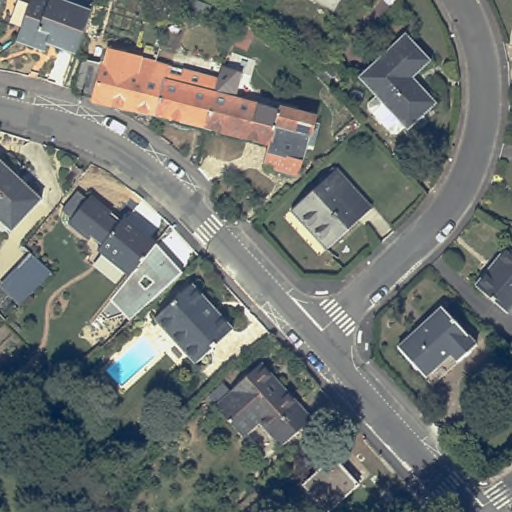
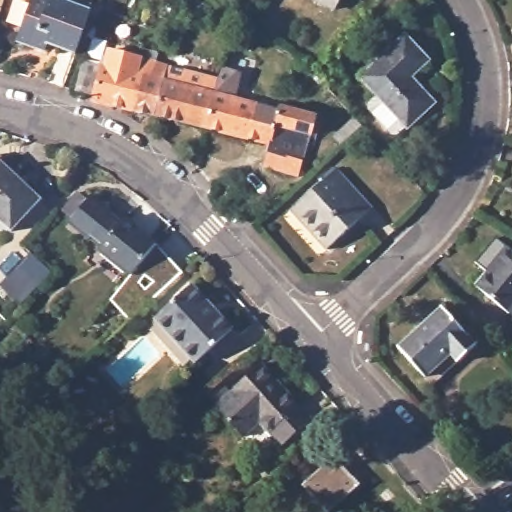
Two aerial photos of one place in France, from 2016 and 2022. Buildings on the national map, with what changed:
unchanged [(51,45),(49,52),(19,43),(33,0),(88,0),(97,3),(79,55),(51,45)]
unchanged [(321,0),(343,0),(338,9),(321,0)]
unchanged [(370,103),(378,96),(362,77),(408,36),(431,60),(413,79),(436,105),(408,130),(406,127),(398,134),(391,133),(370,108),(370,103)]
unchanged [(129,109),(114,106),(92,100),(92,97),(75,89),(84,62),(99,65),(102,50),(160,63),(156,78),(149,77),(148,77),(138,112),(137,111),(129,109)]
unchanged [(216,77),(205,128),(138,112),(148,77),(149,77),(156,78),(160,63),(216,77)]
unchanged [(263,163),(268,143),(220,131),(205,128),(216,77),(233,81),(230,96),(252,101),(277,108),(277,105),(313,114),(300,172),(263,163)]
unchanged [(0,224),(0,152),(28,179),(21,186),(36,200),(8,232),(0,224)]
unchanged [(298,203),(342,163),(378,202),(333,243),(298,203)]
unchanged [(97,248),(102,240),(92,232),(88,236),(69,220),(90,194),(120,217),(123,214),(155,240),(129,273),(97,248)]
unchanged [(507,246),(512,249),(512,310),(510,312),(476,285),(507,246)]
unchanged [(19,264),(30,250),(51,267),(40,281),(19,264)]
unchanged [(153,314),(191,281),(231,326),(194,360),(153,314)]
unchanged [(396,346),(441,305),(475,343),(430,383),(396,346)]
unchanged [(260,421),(243,435),(217,405),(234,390),(233,389),(261,364),(311,420),(282,445),(260,421)]
unchanged [(335,461),(359,487),(332,512),(329,512),(306,486),(335,461)]
unchanged [(102,494),(98,498),(81,484),(99,464),(116,478),(109,486),(120,495),(112,504),(102,494)]

